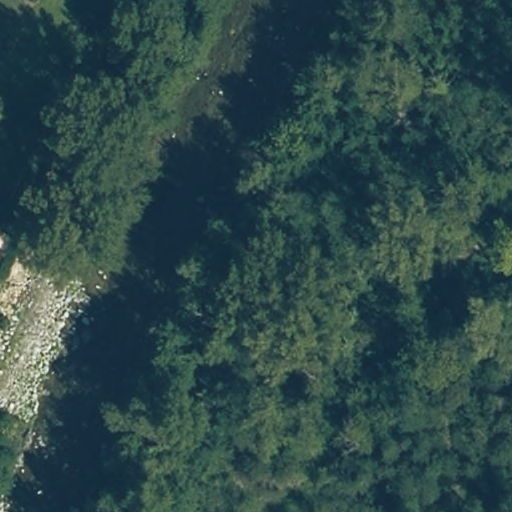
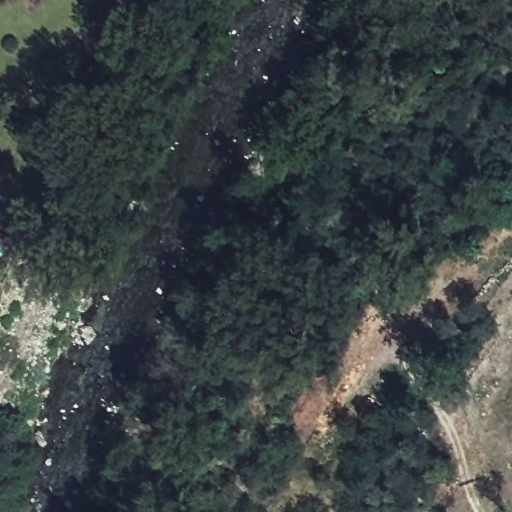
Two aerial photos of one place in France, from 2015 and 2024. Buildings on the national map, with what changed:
[]

